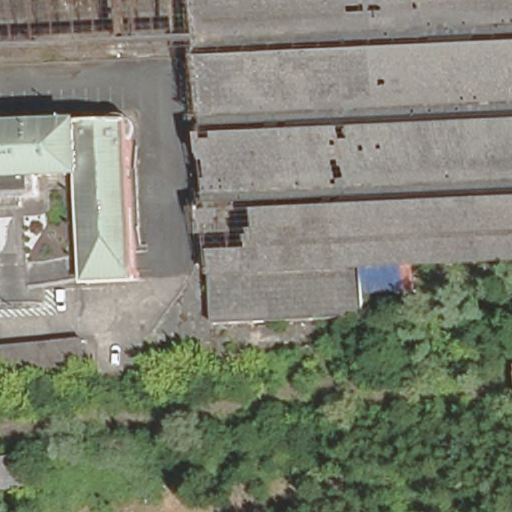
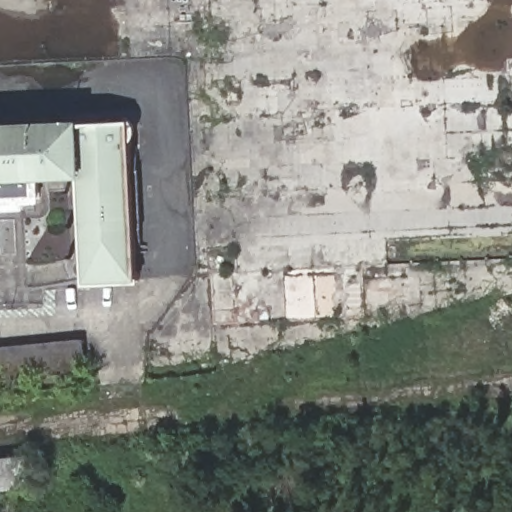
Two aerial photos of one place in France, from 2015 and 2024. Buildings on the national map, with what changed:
demolished [(219,328),(215,275),(205,276),(202,216),(197,119),(194,41),(191,0),(512,0),(512,263),(368,270),(372,320),(219,328)]
unchanged [(81,283),(79,181),(47,184),(47,208),(0,211),(0,127),(130,121),(135,282),(81,283)]
new [(59,283),(40,286),(21,288),(0,289),(0,211),(47,208),(47,184),(79,181),(81,279),(59,283)]
unchanged [(89,341),(91,373),(0,381),(0,348),(89,341)]
unchanged [(33,495),(0,498),(0,457),(30,454),(33,495)]

